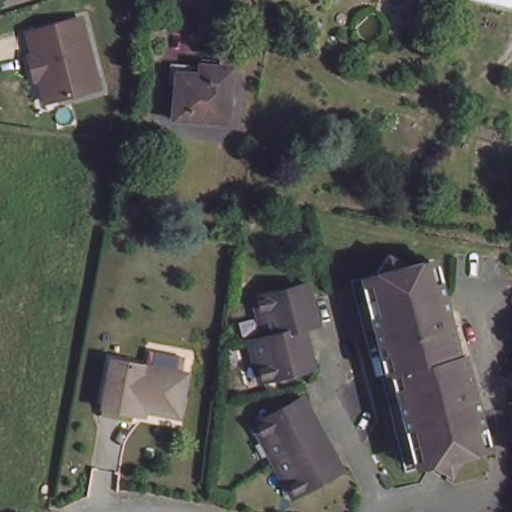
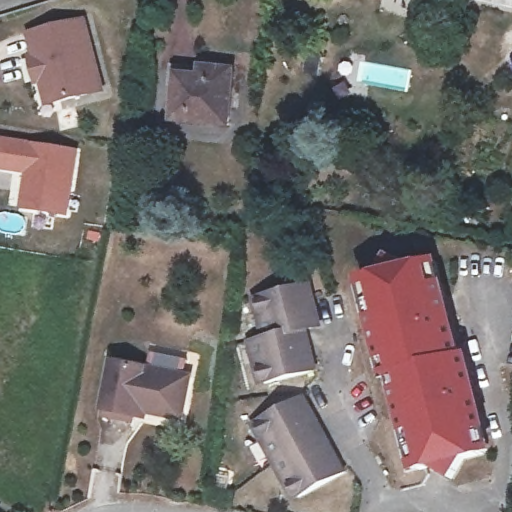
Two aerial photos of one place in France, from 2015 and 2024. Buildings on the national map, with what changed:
unchanged [(512,0),(512,6),(482,0),(512,0)]
unchanged [(34,31),(87,17),(107,87),(53,101),(46,77),(42,79),(36,57),(40,55),(34,31)]
unchanged [(227,127),(174,122),(178,75),(197,78),(198,67),(233,71),(227,127)]
new [(77,146),(68,216),(16,208),(21,173),(0,171),(0,136),(77,146)]
unchanged [(395,370),(387,372),(381,346),(374,319),(365,283),(372,281),(376,280),(387,262),(408,272),(425,268),(430,267),(436,286),(441,305),(448,332),(455,360),(462,359),(471,395),(477,417),(482,436),(487,454),(480,456),(466,460),(451,481),(431,469),(430,469),(422,472),(413,436),(395,370)]
unchanged [(314,371),(265,383),(261,367),(255,368),(248,343),(265,339),(257,317),(265,315),(259,297),(307,285),(318,326),(303,330),(314,371)]
unchanged [(148,405),(147,411),(137,409),(136,414),(105,408),(115,355),(191,371),(185,405),(183,413),(148,405)]
unchanged [(282,488),(257,444),(263,440),(254,423),(297,398),(340,474),(296,501),(288,485),(282,488)]
unchanged [(202,510),(203,497),(227,501),(226,512),(214,512),(202,510)]

